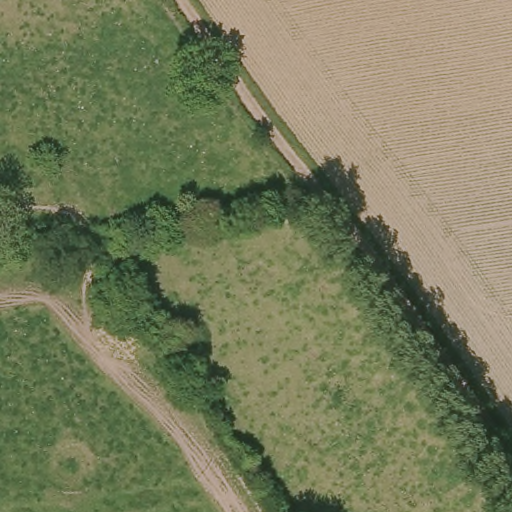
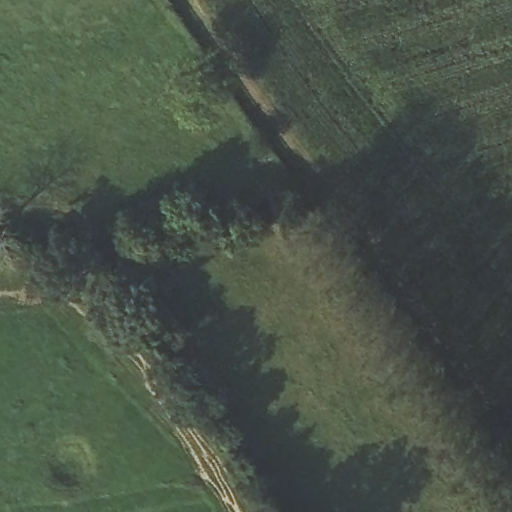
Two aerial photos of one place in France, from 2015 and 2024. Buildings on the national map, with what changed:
[]

